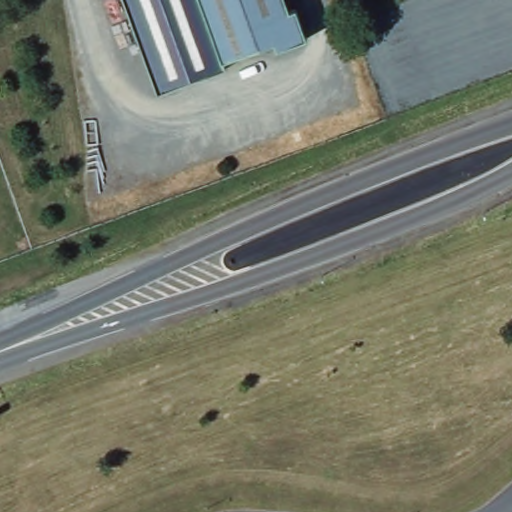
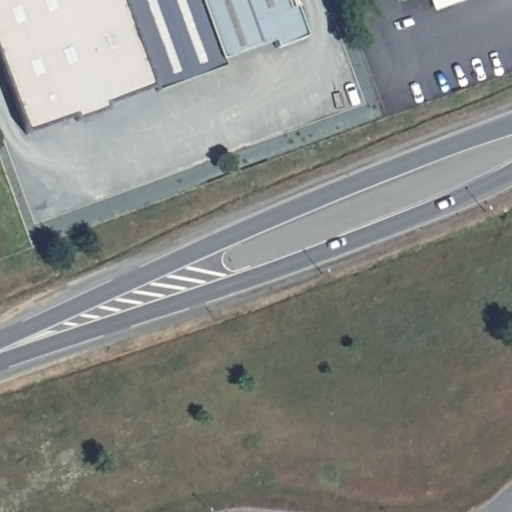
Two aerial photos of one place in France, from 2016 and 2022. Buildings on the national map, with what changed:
new [(77,120),(76,115),(26,134),(0,61),(0,0),(124,0),(157,86),(107,105),(109,109),(77,120)]
unchanged [(159,92),(124,0),(284,0),(287,7),(298,3),(310,34),(277,47),(274,39),(221,59),(224,67),(159,92)]

